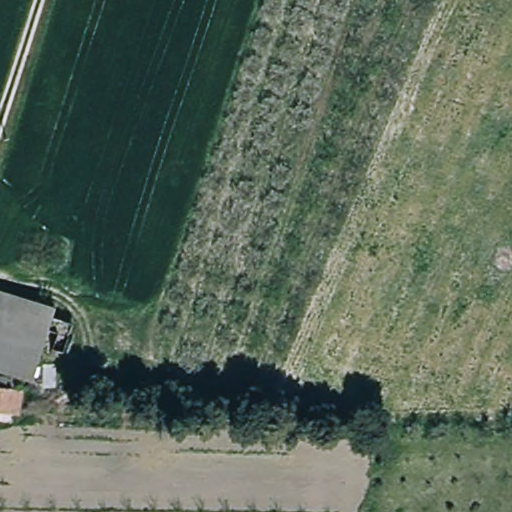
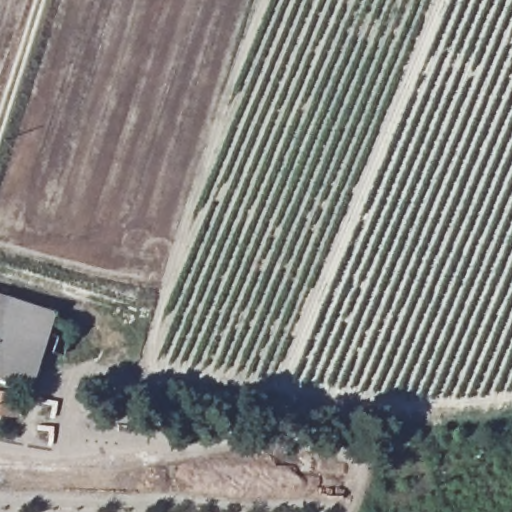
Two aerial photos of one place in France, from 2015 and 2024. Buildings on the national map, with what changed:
unchanged [(5,295),(0,309),(0,294),(5,295)]
unchanged [(12,379),(0,376),(0,309),(5,295),(50,309),(27,381),(27,384),(12,379)]
unchanged [(12,379),(10,390),(19,391),(15,413),(0,411),(0,378),(12,379)]

